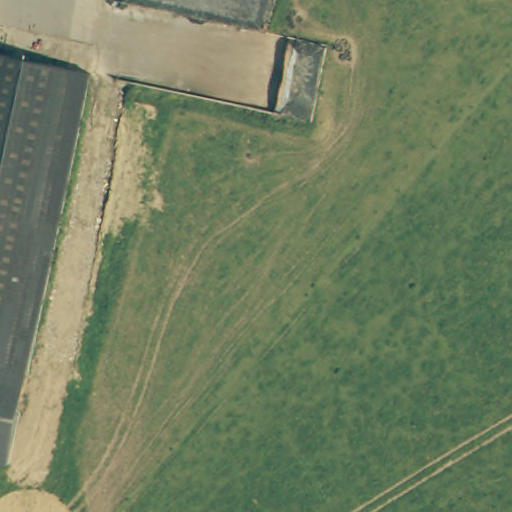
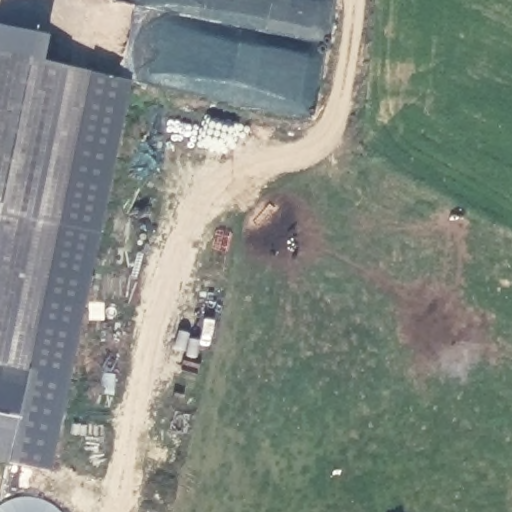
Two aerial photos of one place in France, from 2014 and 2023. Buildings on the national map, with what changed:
unchanged [(99,77),(11,467),(0,465),(0,56),(99,77)]
new [(99,77),(132,84),(52,472),(11,467),(99,77)]

